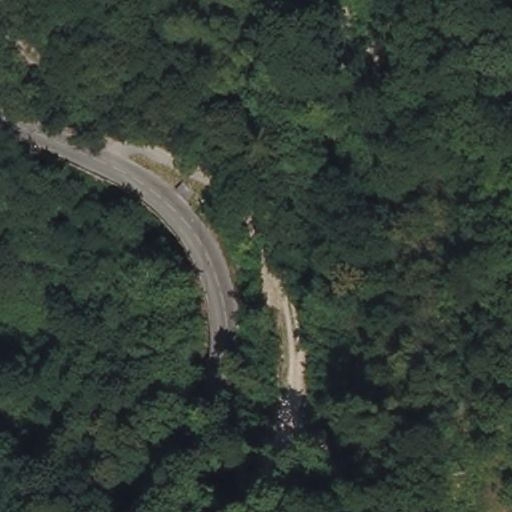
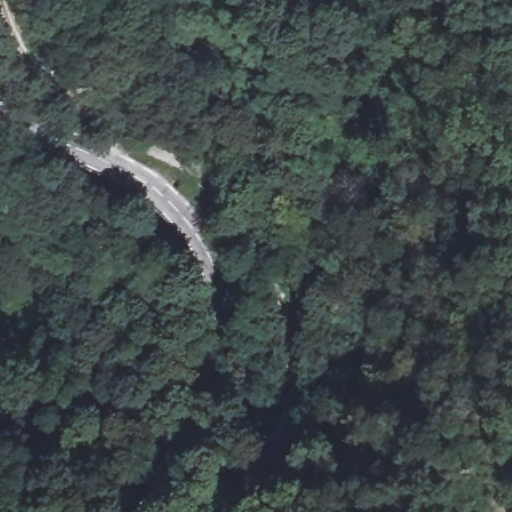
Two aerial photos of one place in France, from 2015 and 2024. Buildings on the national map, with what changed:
unchanged [(204,177),(199,189),(186,180),(192,169),(204,177)]

